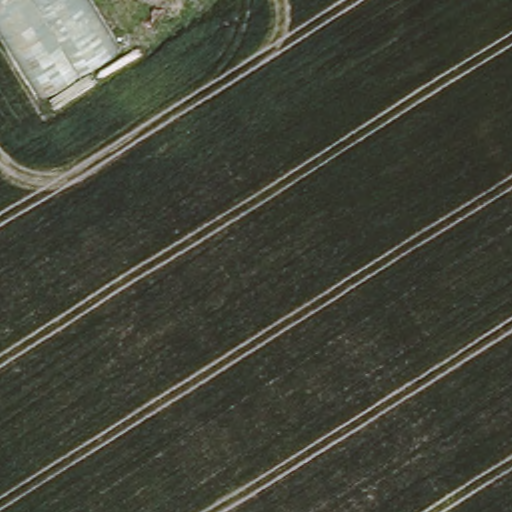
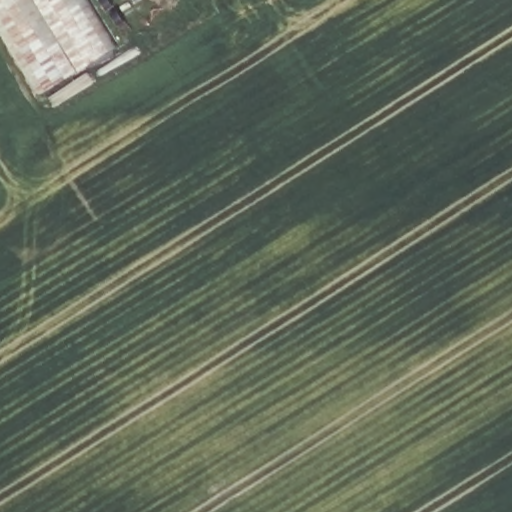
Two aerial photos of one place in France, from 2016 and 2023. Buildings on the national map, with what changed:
unchanged [(40,95),(0,29),(0,0),(79,0),(112,53),(40,95)]

